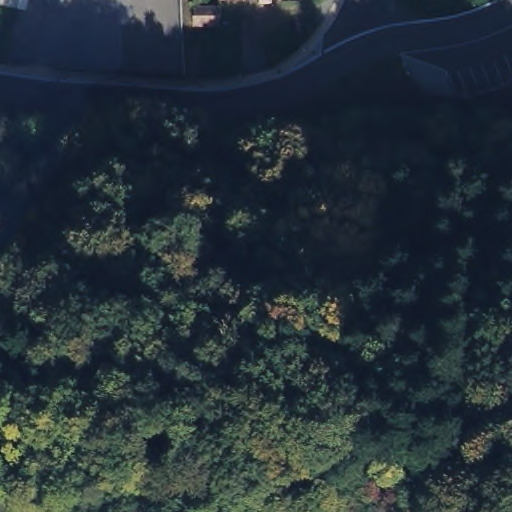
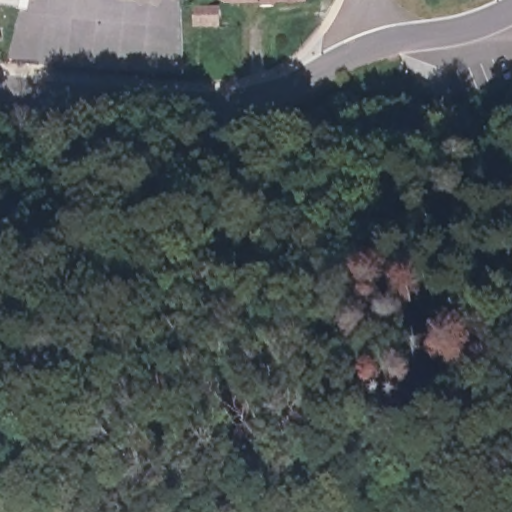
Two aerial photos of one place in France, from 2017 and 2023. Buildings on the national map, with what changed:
unchanged [(219,7),(219,0),(299,0),(300,1),(219,7)]
unchanged [(214,13),(214,30),(190,31),(189,13),(214,13)]

